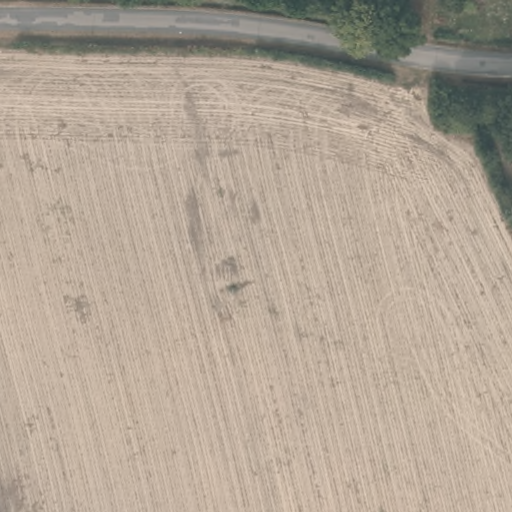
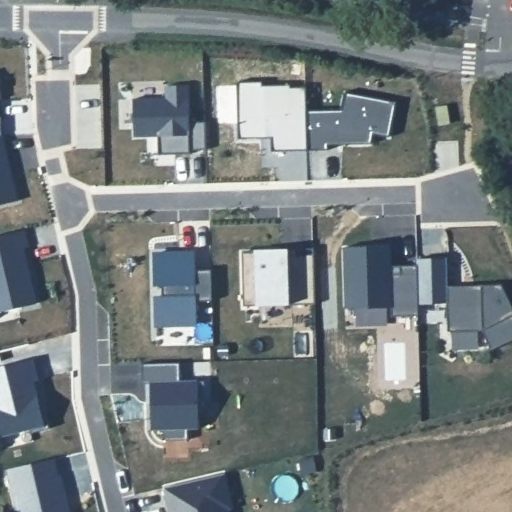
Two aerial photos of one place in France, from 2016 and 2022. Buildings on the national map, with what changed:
new [(167,99),(166,86),(188,86),(189,122),(205,122),(206,150),(190,150),(190,154),(158,155),(158,132),(151,133),(151,136),(134,137),(133,100),(167,99)]
new [(341,110),(344,92),(396,102),(390,137),(373,135),(371,145),(328,145),(328,150),(308,151),(307,111),(341,110)]
new [(1,117),(2,136),(0,136),(0,117),(1,117)]
new [(2,136),(3,136),(3,152),(4,159),(8,158),(18,201),(0,205),(0,136),(2,136)]
new [(25,230),(29,247),(24,248),(37,303),(0,312),(0,236),(25,230)]
new [(390,246),(391,275),(400,274),(400,266),(418,265),(419,305),(419,316),(392,317),(391,307),(346,309),(344,247),(390,246)]
new [(255,252),(255,251),(280,250),(280,255),(314,255),(315,304),(243,306),(242,252),(255,252)]
new [(194,253),(195,270),(211,270),(212,301),(196,301),(196,325),(156,325),(155,298),(162,298),(162,285),(155,285),(154,254),(194,253)]
new [(448,286),(502,285),(512,306),(512,341),(491,350),(482,331),(448,332),(448,303),(419,305),(418,265),(417,260),(447,258),(448,286)]
new [(33,357),(39,380),(37,380),(43,407),(46,406),(52,428),(34,432),(34,428),(0,437),(0,435),(0,365),(33,357)]
new [(206,379),(206,405),(202,404),(202,429),(192,429),(192,441),(162,440),(162,431),(152,431),(151,409),(146,409),(146,381),(206,379)]
new [(54,459),(58,476),(61,475),(70,512),(18,512),(8,470),(54,459)]
new [(225,473),(233,508),(229,510),(229,512),(170,512),(164,488),(225,473)]

